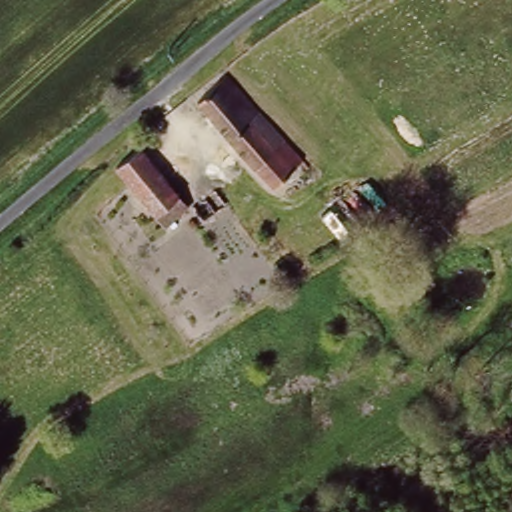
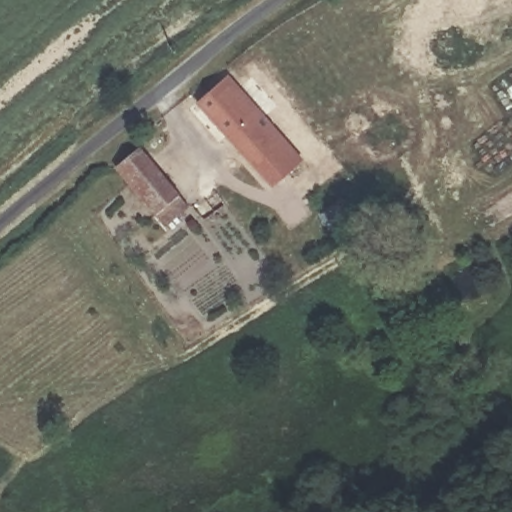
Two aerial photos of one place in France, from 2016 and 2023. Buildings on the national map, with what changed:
unchanged [(298,163),(272,183),(203,94),(230,71),(298,163)]
unchanged [(193,212),(169,229),(124,166),(134,157),(125,146),(140,133),(193,212)]

